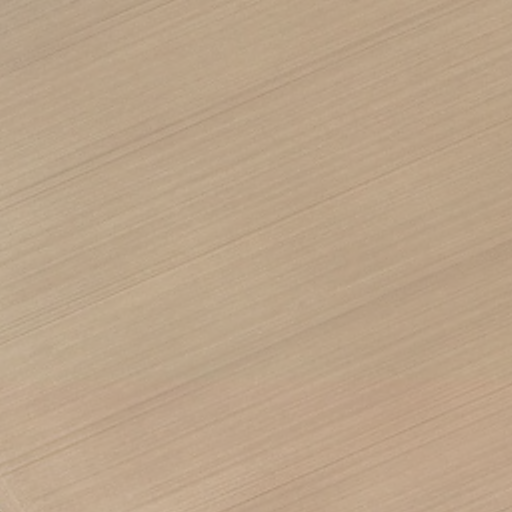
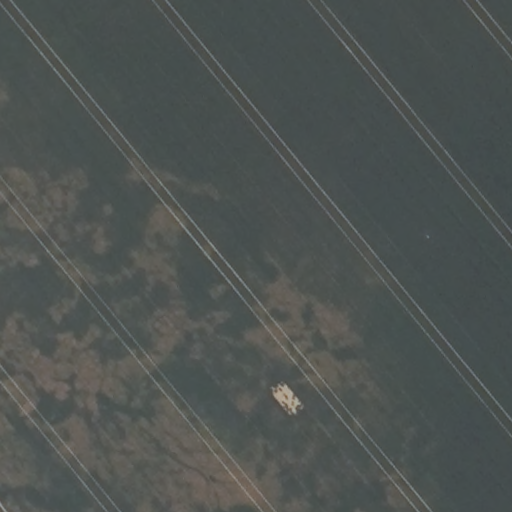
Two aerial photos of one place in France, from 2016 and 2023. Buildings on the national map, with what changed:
[]

